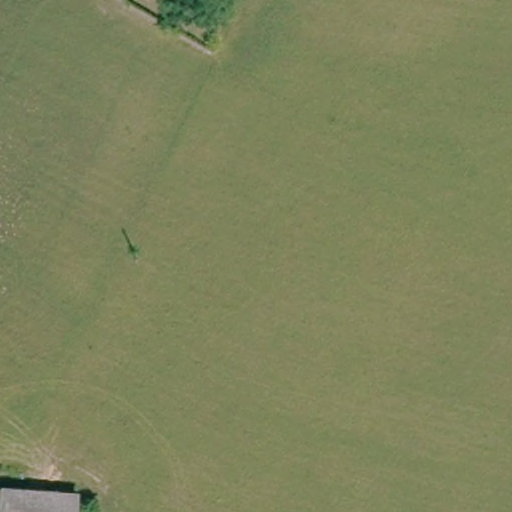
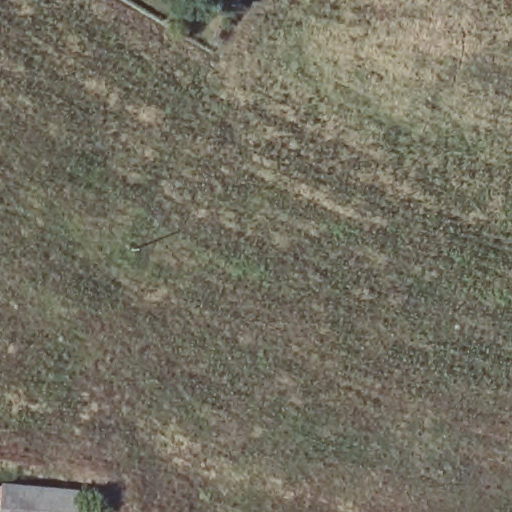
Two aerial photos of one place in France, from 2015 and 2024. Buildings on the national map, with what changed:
unchanged [(2,485),(79,490),(78,512),(0,512),(0,486),(2,487),(2,485)]

